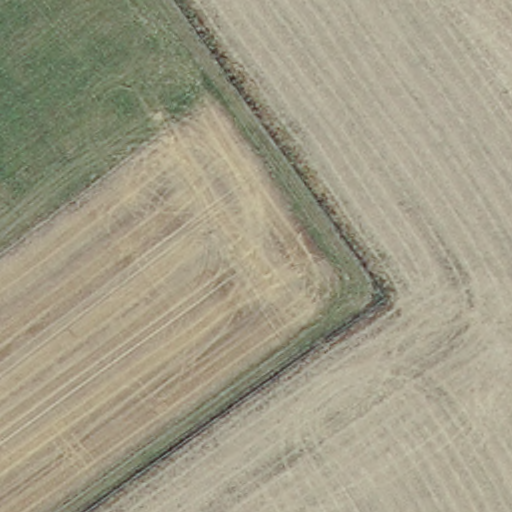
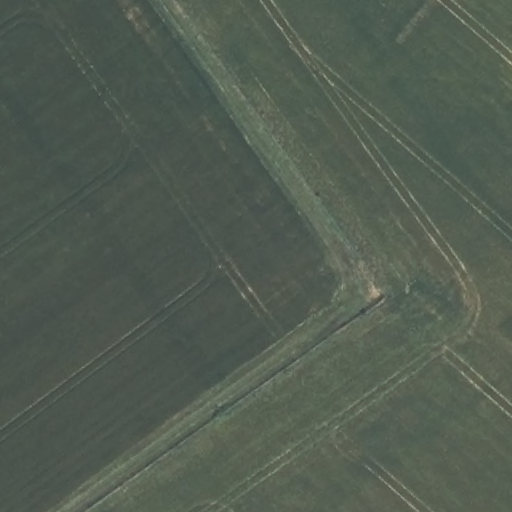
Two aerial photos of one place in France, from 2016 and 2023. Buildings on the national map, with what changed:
[]

